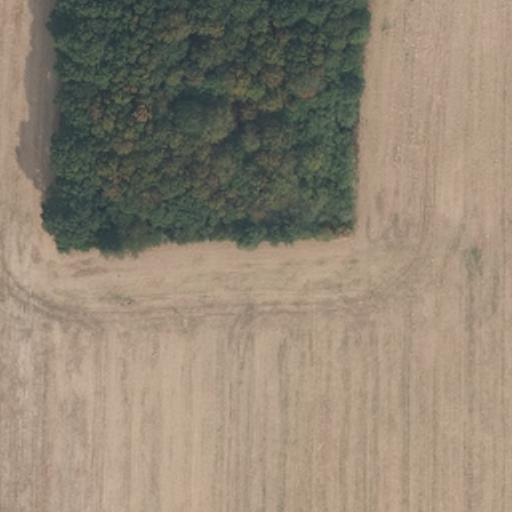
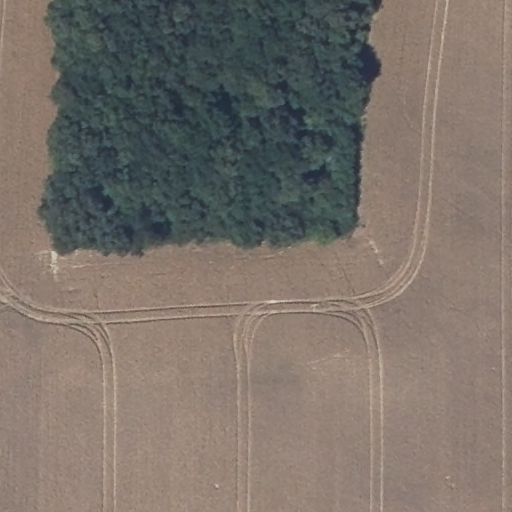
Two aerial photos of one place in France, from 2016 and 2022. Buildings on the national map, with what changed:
[]

